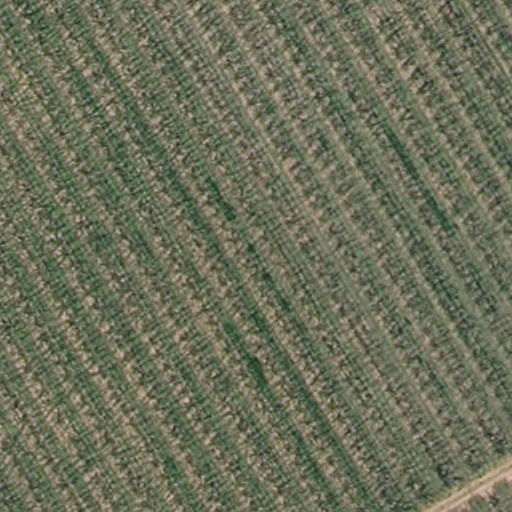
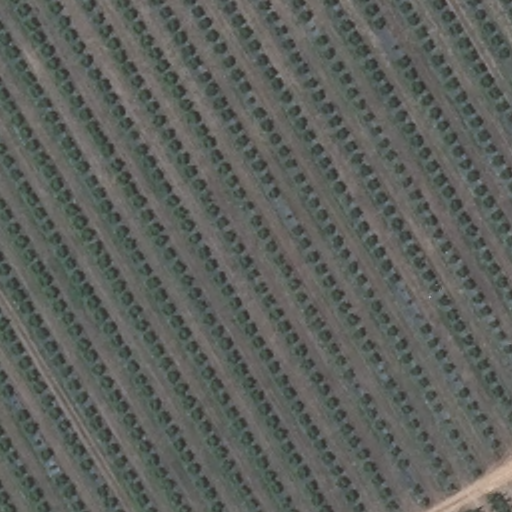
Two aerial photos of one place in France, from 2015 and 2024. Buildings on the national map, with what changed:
[]

